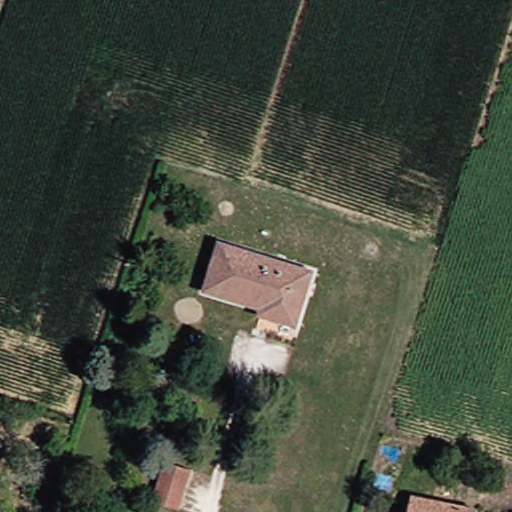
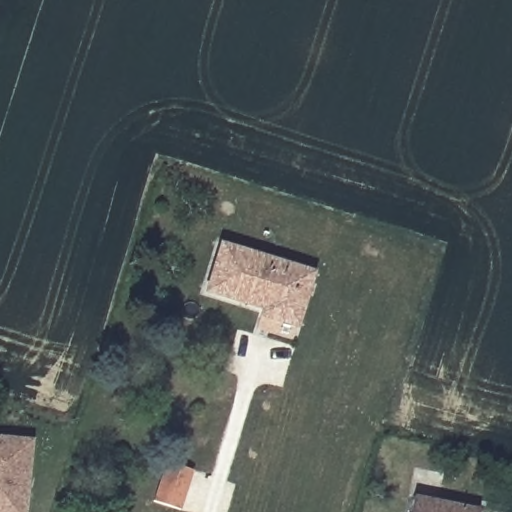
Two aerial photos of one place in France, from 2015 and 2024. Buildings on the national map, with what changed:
unchanged [(316,273),(299,323),(269,313),(270,306),(214,288),(228,242),(316,273)]
new [(0,436),(33,439),(25,512),(0,512),(0,436)]
unchanged [(198,468),(189,507),(149,499),(161,458),(198,468)]
unchanged [(417,491),(483,507),(481,512),(412,512),(417,491)]

